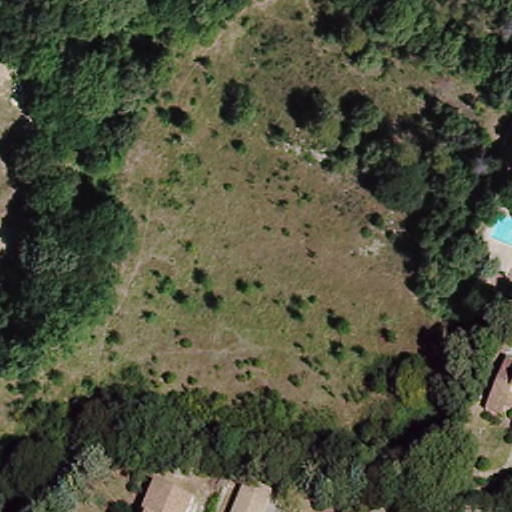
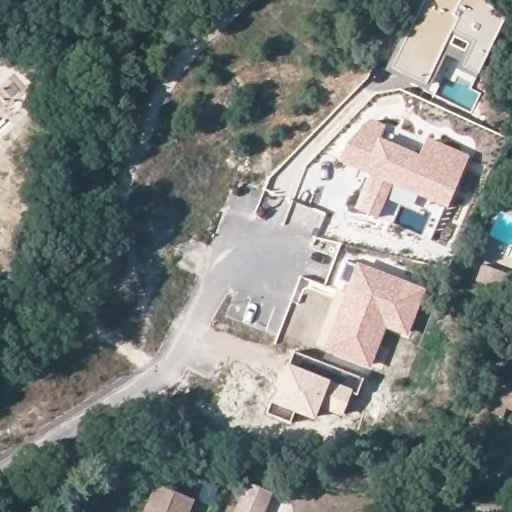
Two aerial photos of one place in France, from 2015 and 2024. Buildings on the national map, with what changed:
new [(422,0),(484,0),(507,15),(476,78),(453,66),(455,63),(442,56),(427,88),(389,68),(422,0)]
new [(347,141),(368,116),(387,125),(382,137),(418,153),(426,136),(470,155),(445,209),(393,186),(377,219),(354,209),(367,176),(336,159),(347,141)]
new [(342,294),(356,261),(426,288),(407,337),(386,329),(370,368),(322,349),(342,294)]
new [(288,361),(295,363),(296,352),(363,379),(357,392),(354,390),(342,416),(319,408),(314,420),(294,412),(290,423),(265,413),(269,402),(288,361)]
unchanged [(507,407),(502,417),(486,409),(491,400),(509,359),(512,360),(512,410),(507,407)]
unchanged [(233,512),(246,480),(273,492),(265,512),(233,512)]
unchanged [(196,499),(191,512),(146,512),(159,483),(196,499)]
unchanged [(377,512),(394,508),(395,512),(377,512)]

